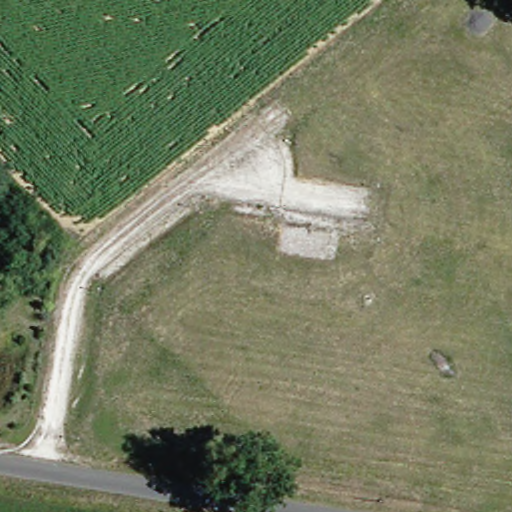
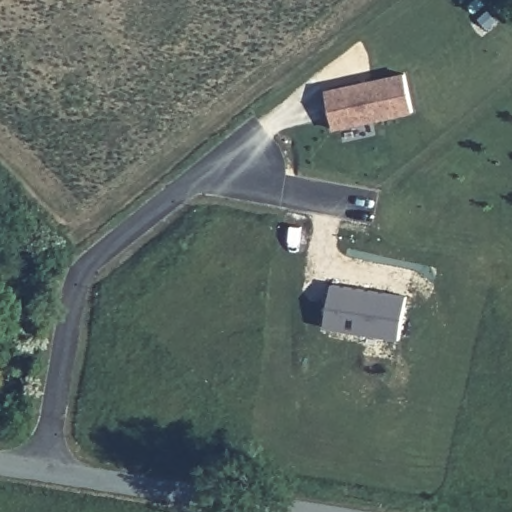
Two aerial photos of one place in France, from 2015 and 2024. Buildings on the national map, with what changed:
new [(333,128),(325,90),(404,74),(412,111),(333,128)]
new [(406,298),(398,340),(327,328),(333,286),(406,298)]

